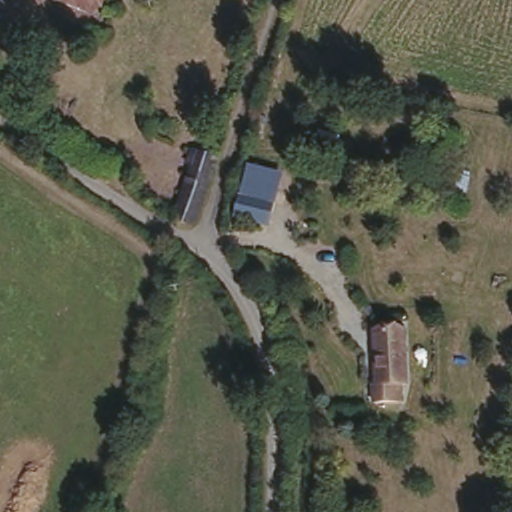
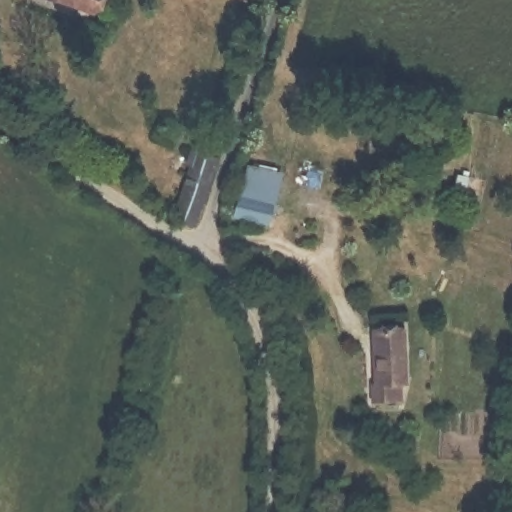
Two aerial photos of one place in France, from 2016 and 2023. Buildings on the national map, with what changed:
unchanged [(48,0),(89,0),(82,15),(48,0)]
unchanged [(192,147),(214,155),(204,187),(194,216),(190,226),(167,215),(192,147)]
unchanged [(247,165),(282,175),(270,227),(233,216),(247,165)]
unchanged [(410,336),(408,388),(402,388),(401,404),(373,404),(373,388),(377,388),(379,331),(410,332),(410,336)]

